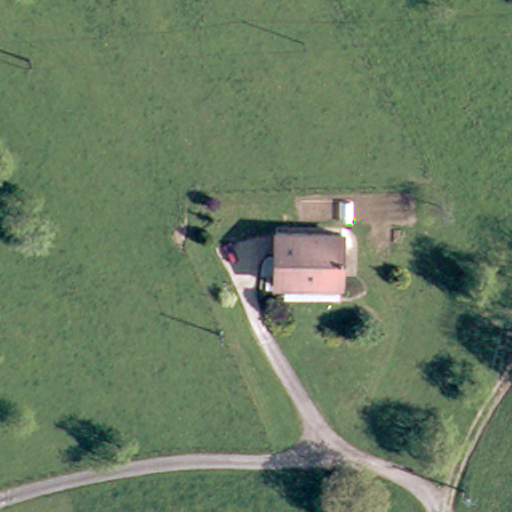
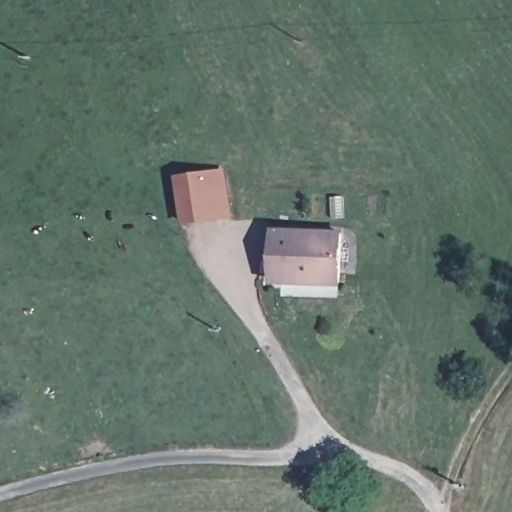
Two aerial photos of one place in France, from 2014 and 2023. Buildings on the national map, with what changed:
new [(224,174),(229,221),(191,228),(183,183),(224,174)]
unchanged [(269,267),(273,229),(340,233),(336,286),(308,283),(267,279),(269,267)]

